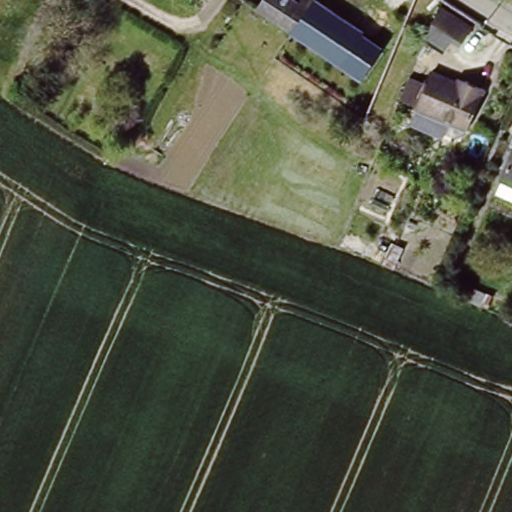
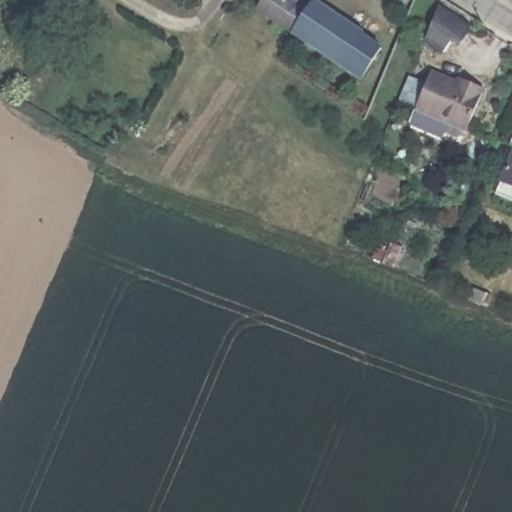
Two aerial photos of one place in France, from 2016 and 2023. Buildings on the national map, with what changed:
unchanged [(256,5),(259,0),(322,0),(365,28),(363,32),(383,46),(363,77),(256,5)]
unchanged [(440,9),(473,27),(464,44),(448,42),(443,53),(424,45),(440,9)]
unchanged [(465,130),(438,119),(427,143),(398,130),(406,113),(404,112),(417,80),(451,94),(457,80),(482,90),(465,130)]
unchanged [(512,162),(512,191),(502,186),(512,162)]

